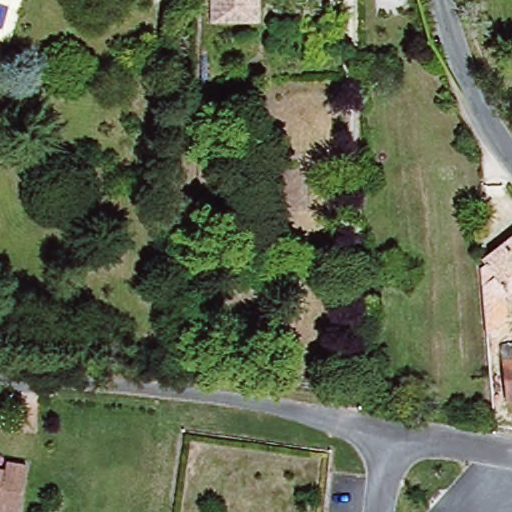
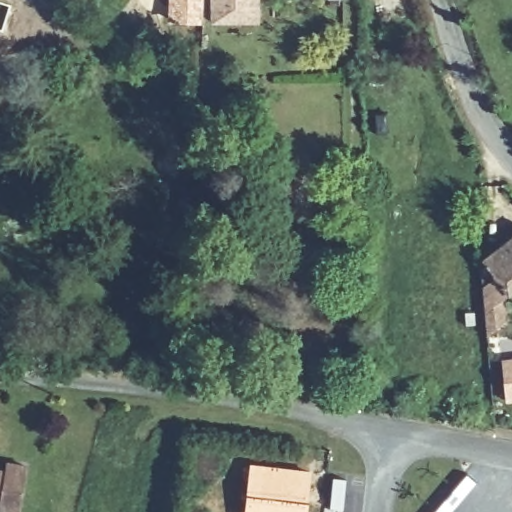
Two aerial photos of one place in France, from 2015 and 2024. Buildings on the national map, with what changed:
unchanged [(214,23),(213,0),(258,0),(258,22),(214,23)]
unchanged [(492,306),(487,262),(490,260),(487,256),(512,237),(512,291),(492,306)]
unchanged [(505,412),(498,358),(512,356),(512,411),(505,412)]
new [(248,462),(310,470),(306,512),(242,512),(248,462)]
unchanged [(0,471),(5,471),(6,463),(27,466),(20,511),(19,512),(0,512),(0,471)]

